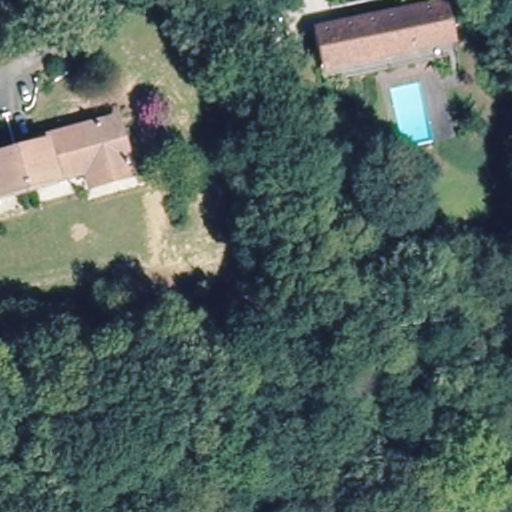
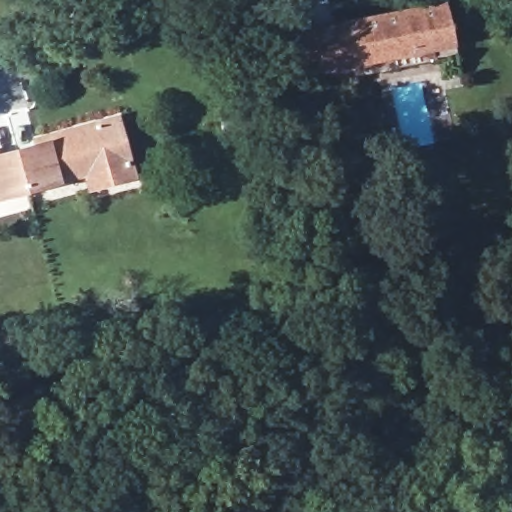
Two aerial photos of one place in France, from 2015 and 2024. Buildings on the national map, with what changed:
unchanged [(445,4),(452,40),(320,67),(312,31),(445,4)]
unchanged [(35,136),(34,132),(116,109),(134,169),(89,181),(84,165),(26,181),(16,141),(35,136)]
unchanged [(26,181),(0,188),(0,146),(16,141),(26,181)]

